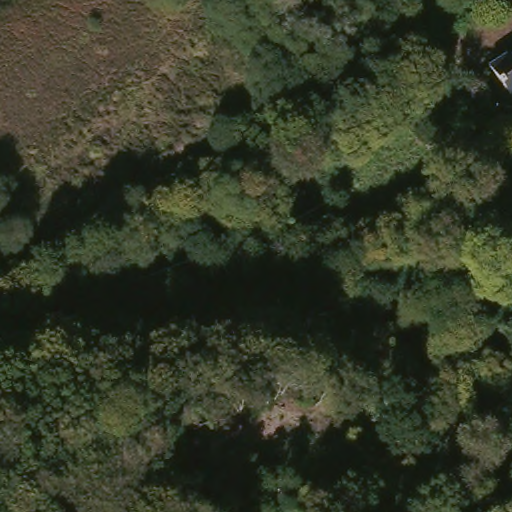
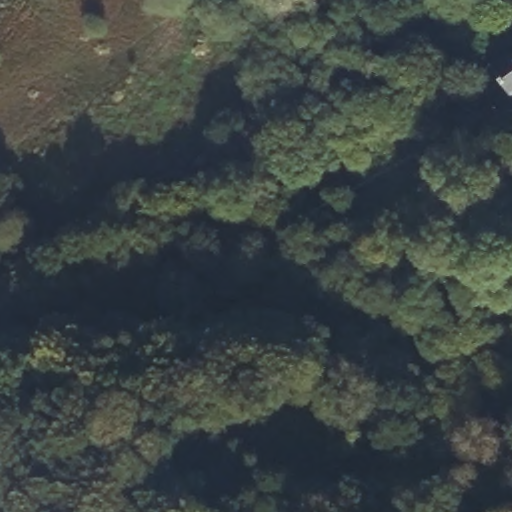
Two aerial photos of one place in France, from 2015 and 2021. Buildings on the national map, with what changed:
unchanged [(512,62),(512,103),(507,108),(486,79),(504,64),(507,67),(512,62)]
unchanged [(501,120),(504,123),(494,130),(492,126),(481,110),(489,103),(501,120)]

